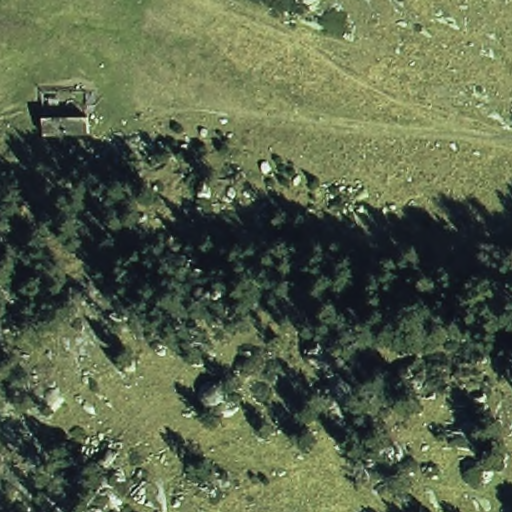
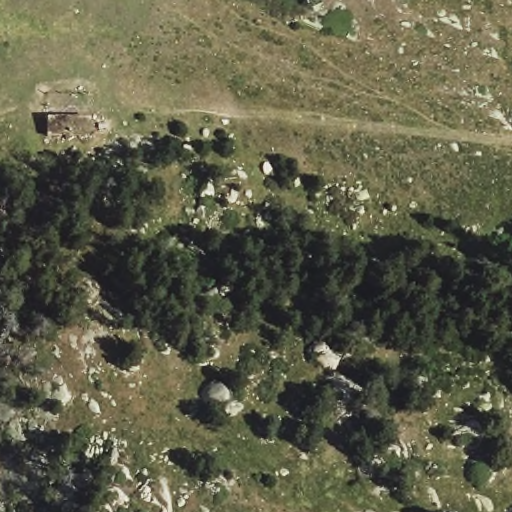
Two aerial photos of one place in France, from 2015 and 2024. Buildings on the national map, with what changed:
unchanged [(45,124),(88,122),(93,140),(45,141),(45,124)]

